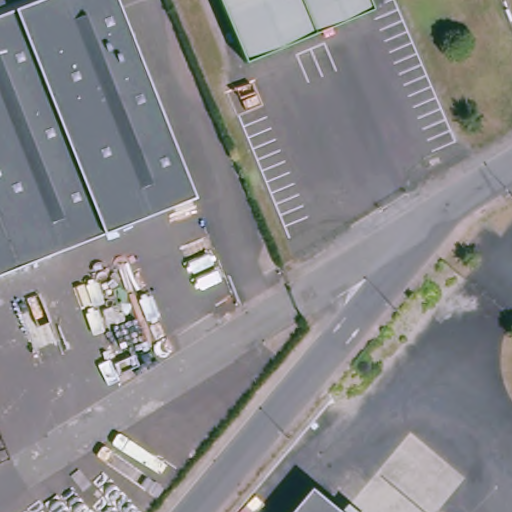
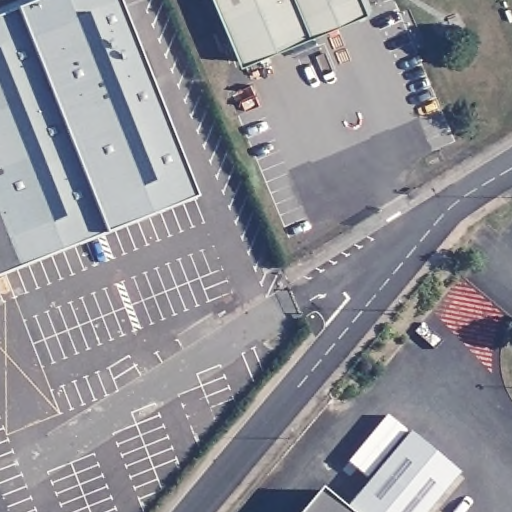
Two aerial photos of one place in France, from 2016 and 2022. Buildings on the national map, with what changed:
unchanged [(115,0),(195,204),(0,279),(0,12),(6,0),(115,0)]
unchanged [(222,0),(271,0),(229,17),(222,0)]
unchanged [(247,62),(229,17),(271,0),(369,0),(373,12),(247,62)]
new [(342,511),(408,431),(458,472),(427,512),(344,512),(342,511)]
unchanged [(316,488),(343,512),(298,512),(316,488)]

